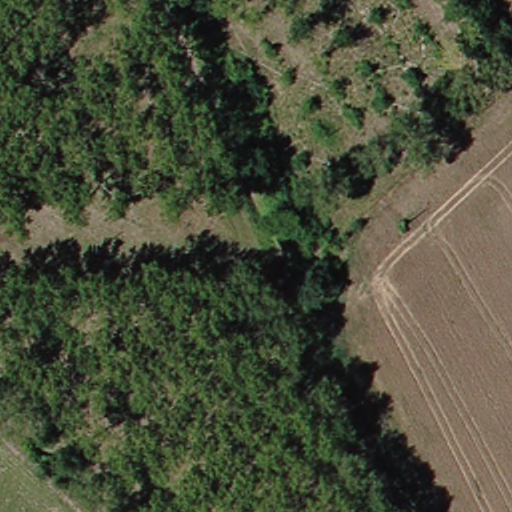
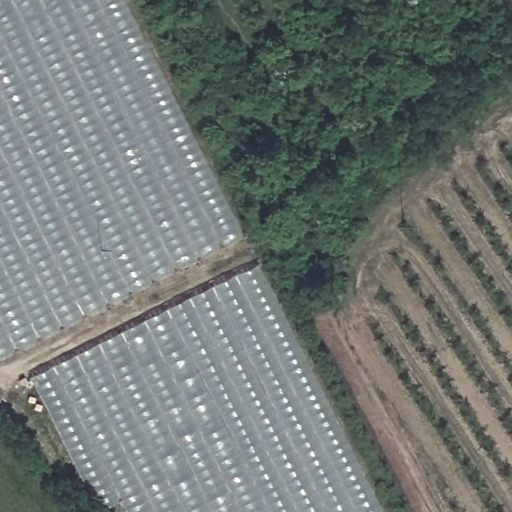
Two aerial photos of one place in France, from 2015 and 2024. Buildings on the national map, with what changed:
new [(120,0),(240,237),(0,359),(0,0),(120,0)]
new [(255,265),(379,512),(122,512),(117,503),(96,512),(26,378),(255,265)]

